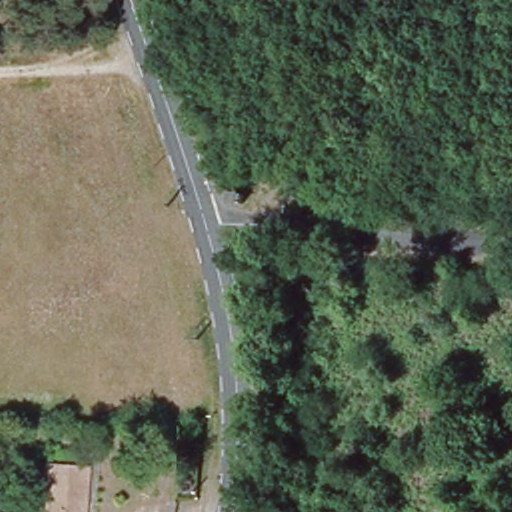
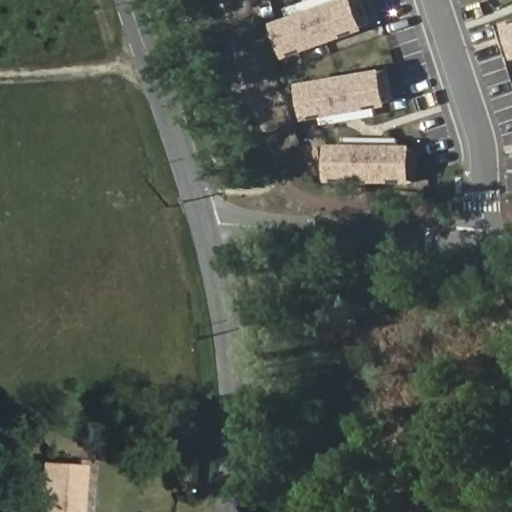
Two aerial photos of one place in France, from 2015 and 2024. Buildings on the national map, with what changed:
new [(281,17),(333,0),(357,0),(367,29),(361,32),(294,55),(287,57),(275,20),(281,17)]
new [(285,5),(300,0),(334,0),(289,15),(285,5)]
new [(511,25),(512,25),(512,54),(505,27),(511,25)]
new [(300,78),(306,76),(376,64),(383,63),(390,101),(383,102),(321,113),(313,115),(306,115),(300,78)]
new [(323,123),(321,113),(375,104),(376,114),(323,123)]
new [(344,148),(344,137),(398,139),(398,149),(344,148)]
new [(406,186),(399,186),(335,184),(327,184),(329,148),(335,148),(399,149),(406,149),(406,186)]
unchanged [(90,459),(85,512),(45,512),(49,457),(90,459)]

